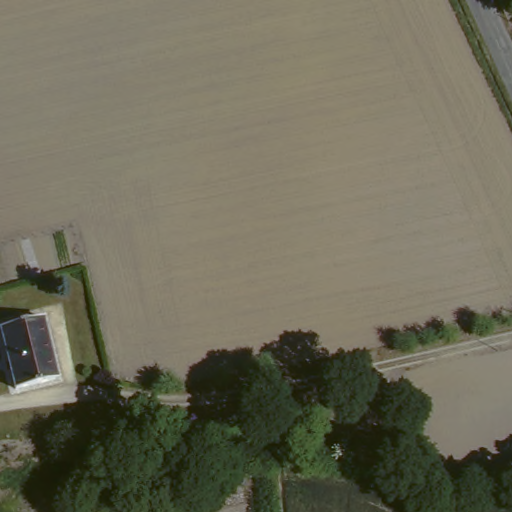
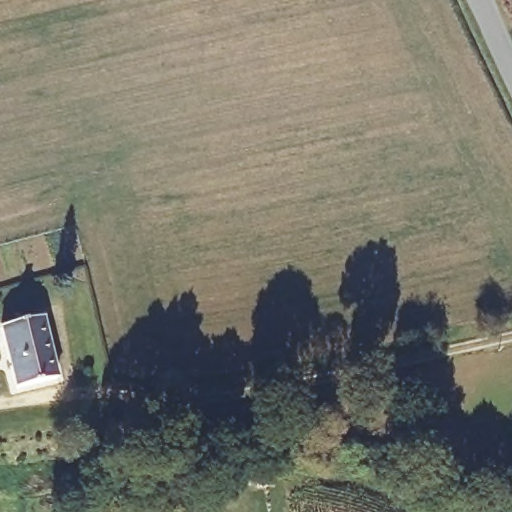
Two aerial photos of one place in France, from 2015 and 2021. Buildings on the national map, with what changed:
unchanged [(11,391),(0,337),(0,328),(37,320),(50,383),(11,391)]

